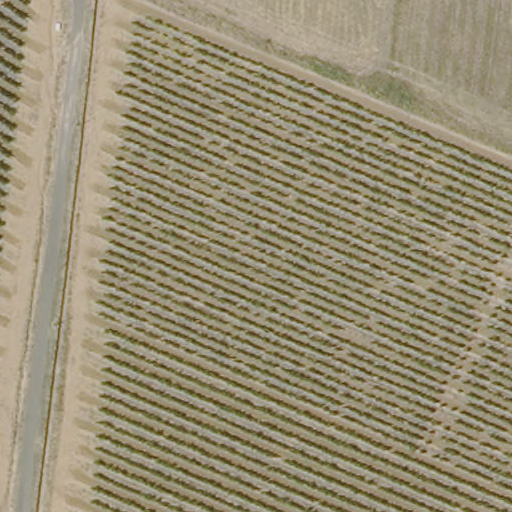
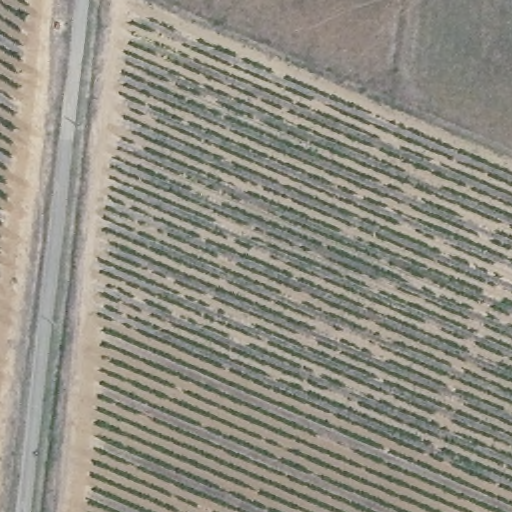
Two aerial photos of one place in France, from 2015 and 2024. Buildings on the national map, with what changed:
[]

